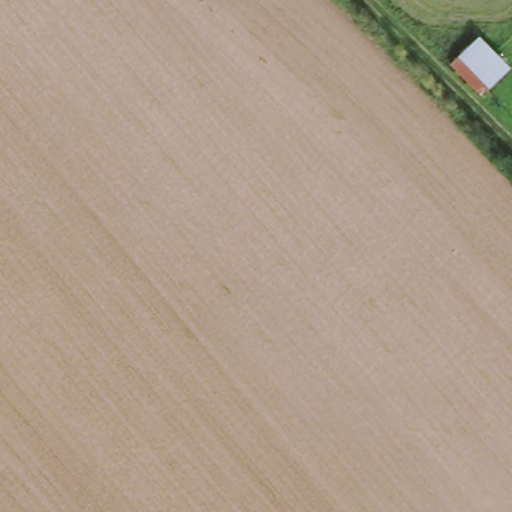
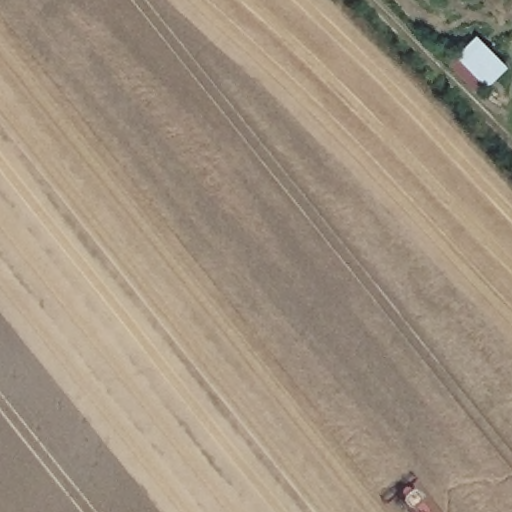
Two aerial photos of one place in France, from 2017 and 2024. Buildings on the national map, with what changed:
unchanged [(475,31),(510,68),(482,95),(445,65),(475,31)]

